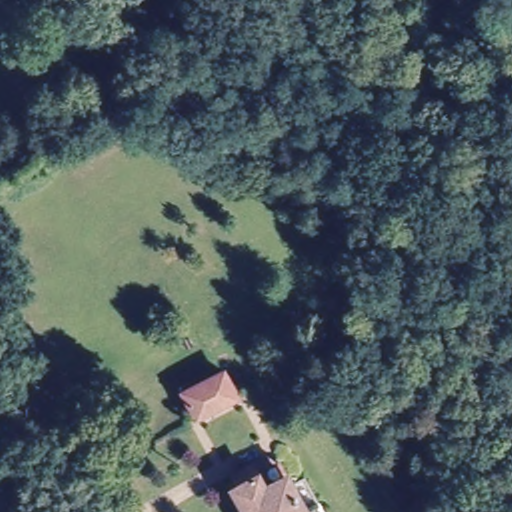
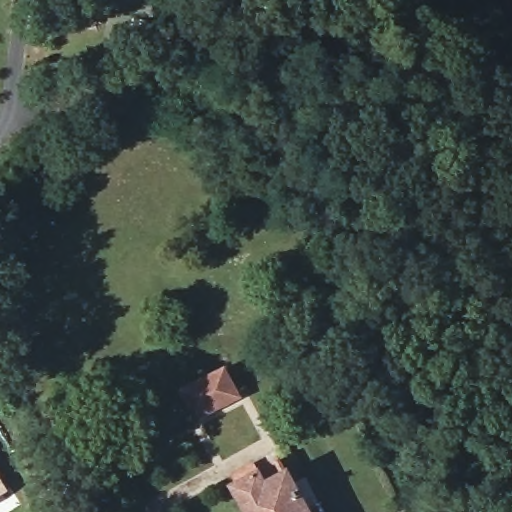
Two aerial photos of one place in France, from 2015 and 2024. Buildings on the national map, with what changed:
unchanged [(198,417),(184,391),(226,369),(239,394),(198,417)]
unchanged [(235,483),(261,468),(268,481),(287,471),(309,510),(321,502),(327,512),(251,512),(235,483)]
new [(9,490),(0,496),(0,475),(9,490)]

